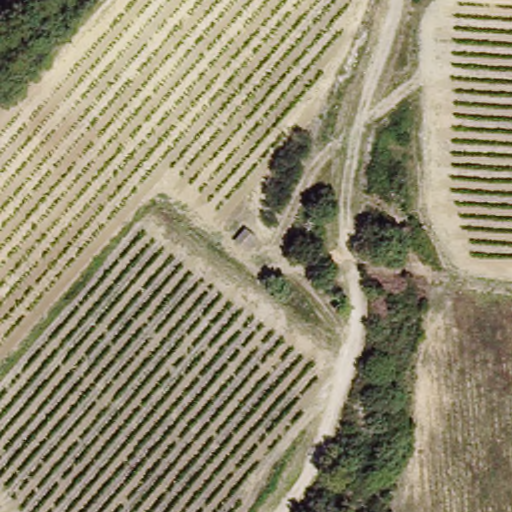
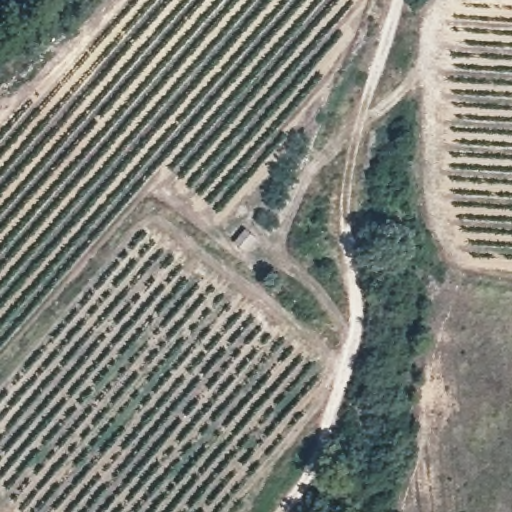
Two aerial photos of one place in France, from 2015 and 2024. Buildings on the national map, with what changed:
unchanged [(258,236),(248,249),(239,241),(249,229),(258,236)]

